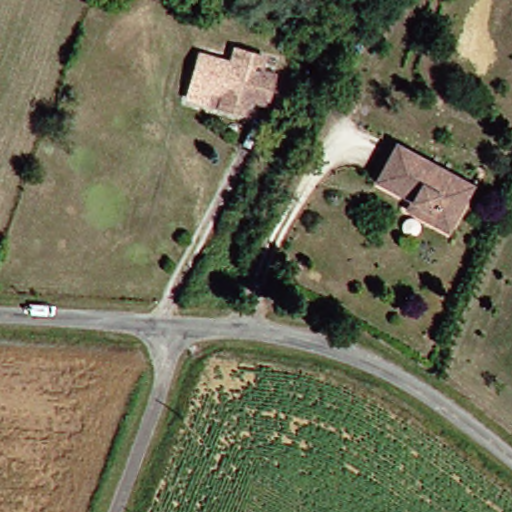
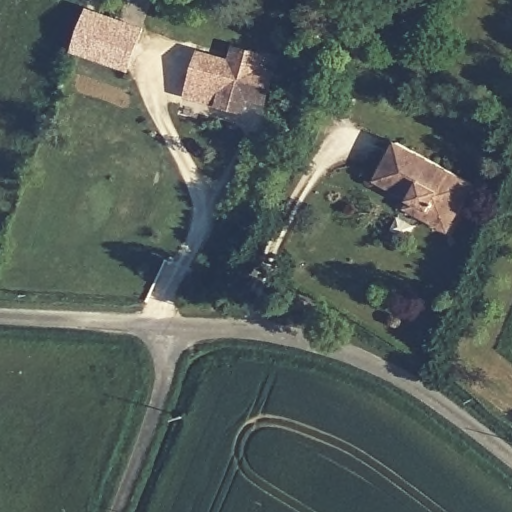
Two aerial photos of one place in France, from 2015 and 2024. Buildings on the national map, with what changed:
new [(126,74),(69,54),(85,9),(142,29),(126,74)]
unchanged [(220,109),(187,99),(201,54),(227,61),(231,48),(262,56),(258,70),(273,75),(263,104),(246,100),(242,114),(220,109)]
demolished [(189,65),(185,76),(176,73),(177,61),(189,65)]
unchanged [(405,200),(371,178),(394,142),(468,191),(438,236),(415,219),(417,216),(397,208),(405,200)]

